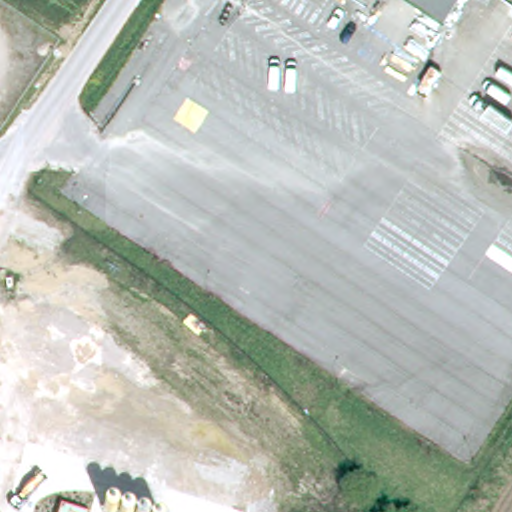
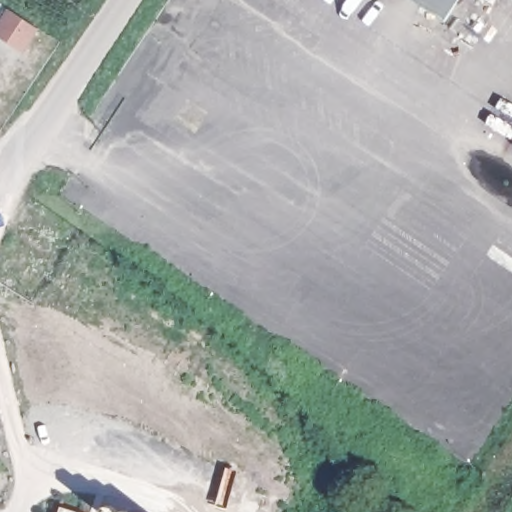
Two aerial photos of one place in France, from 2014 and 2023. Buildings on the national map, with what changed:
unchanged [(444,16),(420,0),(458,0),(446,18),(444,16)]
new [(8,10),(35,28),(21,51),(0,37),(0,23),(8,10)]
new [(61,507),(78,512),(59,512),(61,507)]

